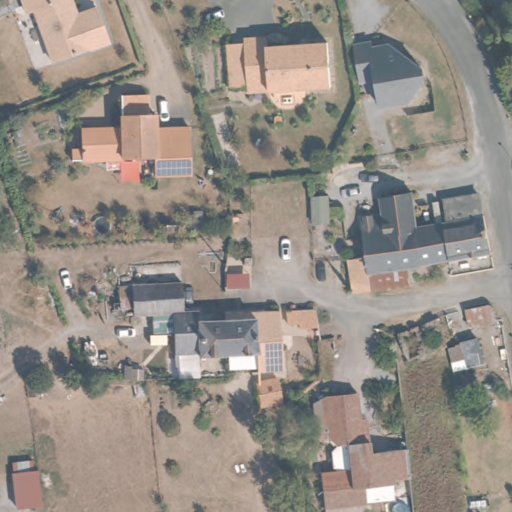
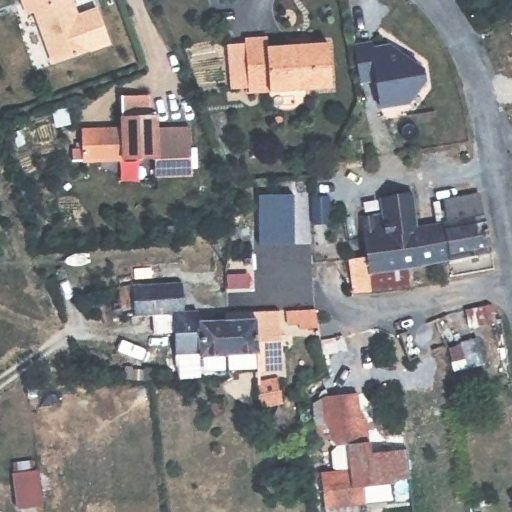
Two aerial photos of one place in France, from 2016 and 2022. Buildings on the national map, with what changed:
unchanged [(99,13),(110,50),(52,67),(35,14),(29,16),(24,0),(72,0),(79,20),(99,13)]
unchanged [(227,41),(245,41),(245,30),(265,29),(265,37),(327,37),(328,82),(245,86),(228,86),(227,41)]
unchanged [(360,85),(355,47),(371,45),(372,51),(388,48),(390,57),(400,56),(422,72),(416,80),(418,92),(408,106),(380,110),(375,82),(360,85)]
unchanged [(121,132),(123,98),(149,100),(147,119),(156,119),(156,134),(190,135),(187,182),(151,180),(152,164),(70,160),(71,150),(80,151),(80,130),(121,132)]
unchanged [(370,293),(351,295),(348,265),(365,263),(360,216),(381,213),(380,195),(410,191),(417,202),(422,221),(427,265),(408,267),(410,288),(370,293)]
new [(292,193),(292,244),(258,244),(257,194),(292,193)]
unchanged [(487,201),(494,257),(455,262),(450,217),(460,217),(458,204),(487,201)]
unchanged [(450,217),(455,262),(427,265),(422,221),(450,217)]
unchanged [(185,312),(200,312),(199,321),(222,322),(224,358),(198,357),(198,351),(173,350),(174,312),(130,312),(131,282),(186,283),(185,312)]
unchanged [(493,298),(494,317),(467,320),(466,301),(493,298)]
unchanged [(281,312),(286,374),(261,375),(260,357),(224,358),(222,322),(221,316),(281,312)]
unchanged [(328,312),(328,314),(331,345),(319,345),(319,333),(307,333),(307,312),(328,312)]
unchanged [(293,393),(299,417),(278,422),(271,398),(275,397),(293,393)]
unchanged [(365,426),(368,459),(402,457),(405,486),(390,487),(390,492),(365,493),(366,512),(329,512),(326,479),(351,477),(350,452),(339,452),(333,446),(328,402),(357,399),(360,426),(365,426)]
unchanged [(33,471),(36,505),(14,507),(10,473),(33,471)]

